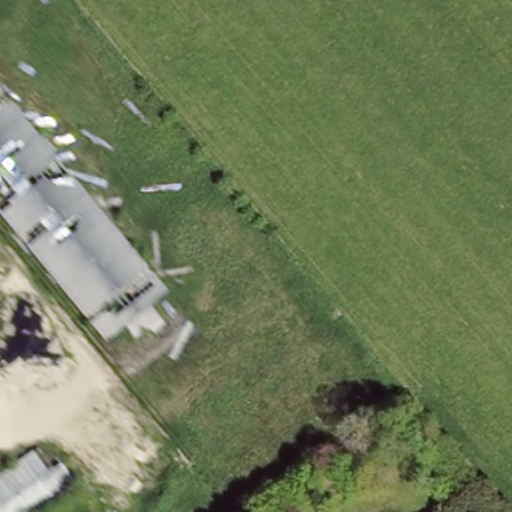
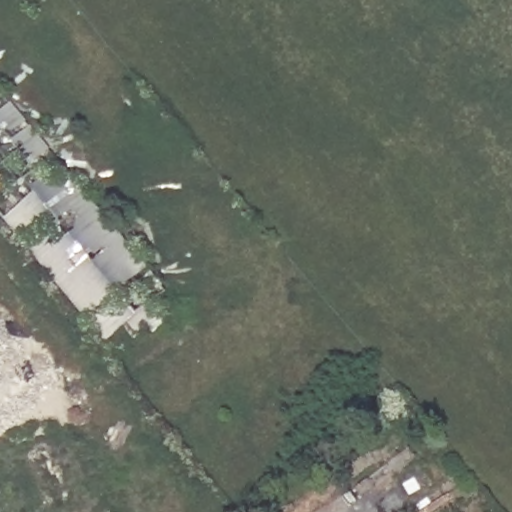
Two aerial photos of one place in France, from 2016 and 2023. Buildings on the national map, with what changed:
unchanged [(135,337),(125,324),(110,337),(0,203),(0,88),(167,290),(149,304),(159,317),(135,337)]
demolished [(55,466),(64,460),(79,487),(43,512),(0,512),(0,472),(40,443),(55,466)]

